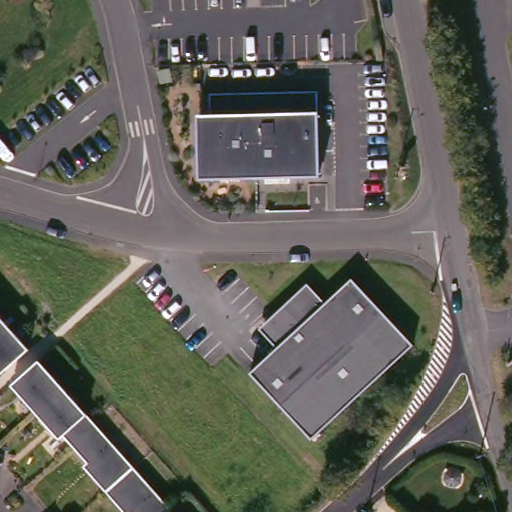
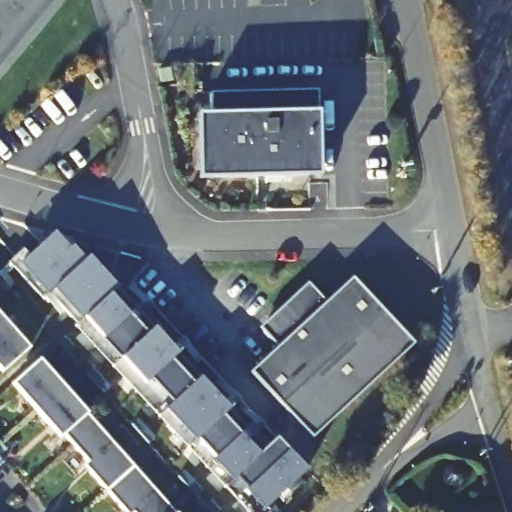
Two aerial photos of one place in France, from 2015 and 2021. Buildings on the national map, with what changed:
new [(0,0),(69,0),(0,82),(0,0)]
unchanged [(209,115),(209,95),(316,93),(317,112),(318,176),(198,178),(194,115),(209,115)]
new [(22,252),(30,255),(53,234),(69,250),(72,247),(85,261),(88,258),(117,290),(135,310),(154,329),(178,355),(201,379),(230,410),(267,450),(277,440),(306,472),(266,510),(268,512),(246,512),(76,329),(80,322),(52,291),(45,297),(18,267),(17,267),(14,269),(9,264),(22,252)]
unchanged [(278,345),(261,327),(312,277),(329,300),(356,275),(419,345),(316,439),(253,372),(278,345)]
unchanged [(13,373),(12,374),(1,361),(0,363),(0,311),(36,352),(13,373)]
unchanged [(128,508),(124,511),(90,473),(94,470),(54,422),(50,426),(24,397),(28,393),(17,380),(41,359),(174,512),(131,512),(128,508)]
unchanged [(0,462),(0,456),(3,459),(0,462)]
unchanged [(53,512),(48,512),(50,510),(51,510),(53,512)]

